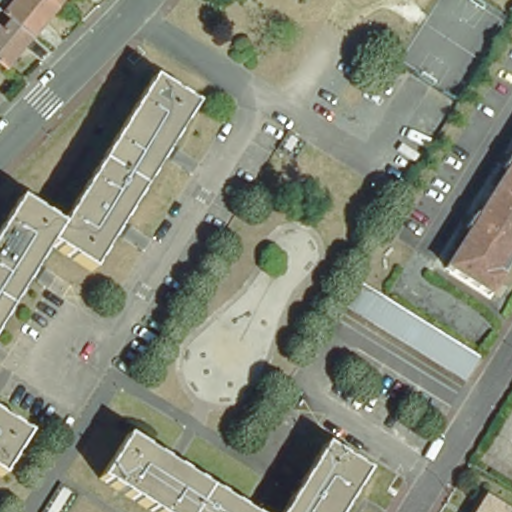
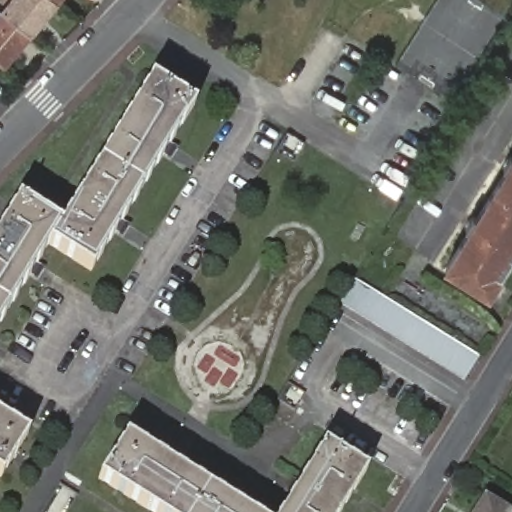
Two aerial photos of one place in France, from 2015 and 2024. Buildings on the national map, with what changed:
unchanged [(12,16),(5,11),(15,0),(57,0),(59,1),(33,34),(12,16)]
unchanged [(57,0),(60,0),(59,1),(57,0)]
unchanged [(0,60),(0,24),(4,26),(12,16),(33,34),(7,65),(0,60)]
unchanged [(0,321),(0,228),(17,200),(58,224),(150,81),(191,106),(90,269),(48,244),(0,321)]
unchanged [(446,267),(457,250),(469,230),(465,227),(472,215),(477,218),(506,170),(502,168),(508,157),(512,159),(512,245),(494,273),(499,277),(489,293),(446,267)]
unchanged [(476,351),(462,375),(339,297),(354,273),(476,351)]
unchanged [(27,431),(0,476),(0,415),(27,431)]
unchanged [(250,512),(152,512),(99,479),(126,436),(250,512)]
unchanged [(322,442),(363,468),(336,512),(276,512),(322,442)]
unchanged [(486,501),(490,505),(501,512),(479,512),(486,501)]

